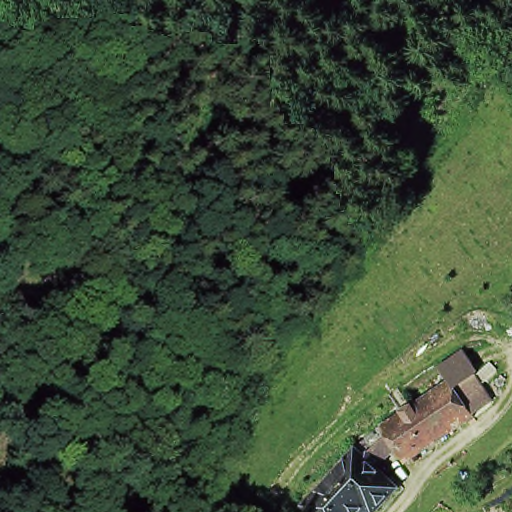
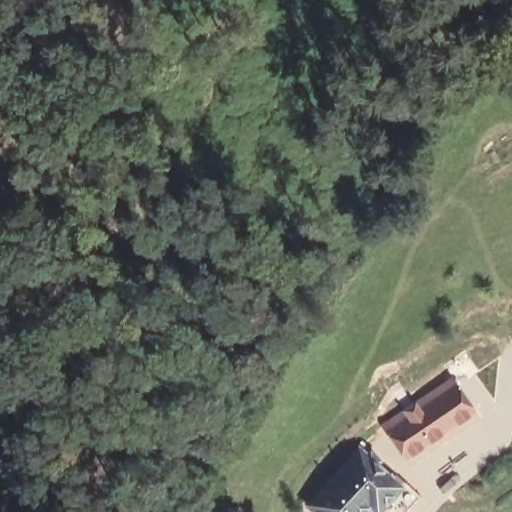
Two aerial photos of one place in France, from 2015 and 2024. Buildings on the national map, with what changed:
unchanged [(417,462),(390,429),(457,381),(469,401),(477,412),(417,462)]
unchanged [(380,503),(371,512),(324,512),(310,495),(360,450),(380,472),(390,466),(408,485),(387,509),(380,503)]

